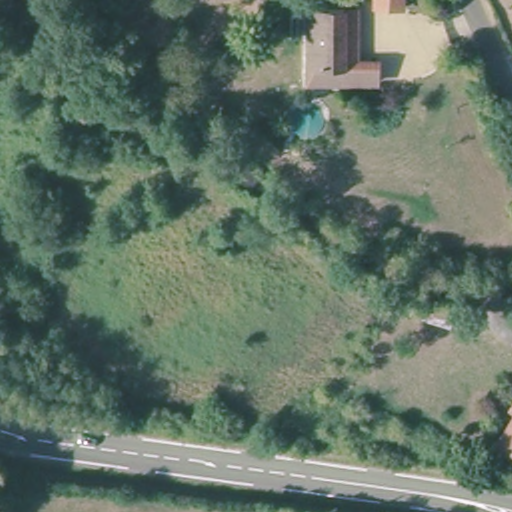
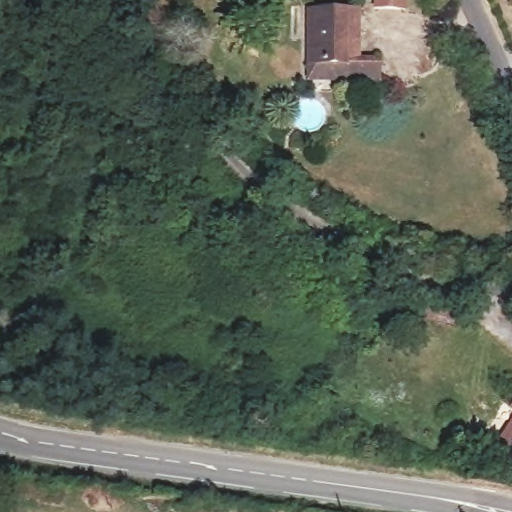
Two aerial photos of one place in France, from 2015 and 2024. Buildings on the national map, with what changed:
unchanged [(373,0),(406,0),(406,9),(372,7),(373,0)]
unchanged [(316,59),(315,9),(353,8),(353,54),(390,56),(391,79),(353,78),(316,77),(316,59)]
unchanged [(512,431),(512,449),(505,444),(512,431)]

